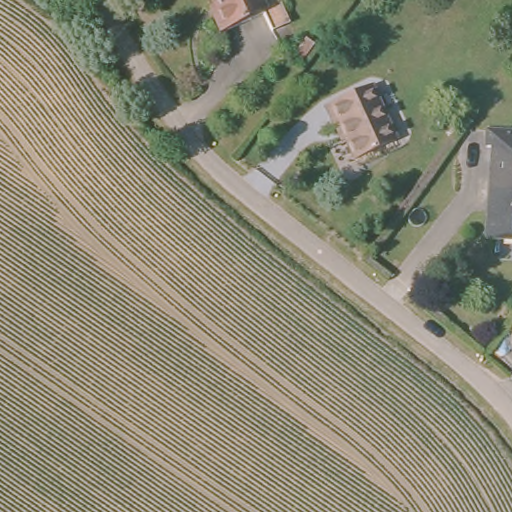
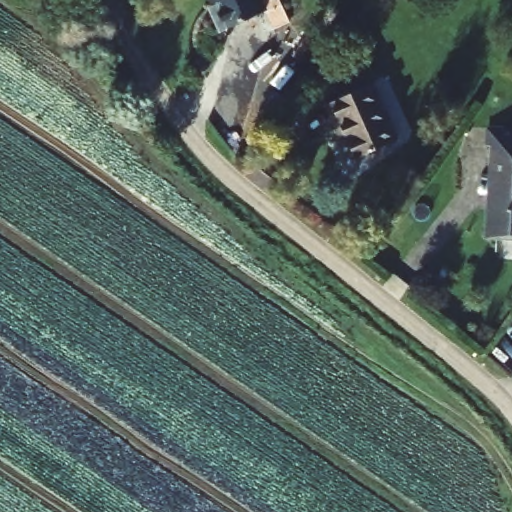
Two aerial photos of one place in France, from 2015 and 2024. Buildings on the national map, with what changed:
unchanged [(271,11),(279,29),(261,37),(253,19),(214,35),(199,0),(247,0),(254,18),(271,11)]
unchanged [(371,90),(395,147),(353,164),(345,144),(341,145),(326,109),(371,90)]
unchanged [(488,151),(489,135),(512,137),(512,242),(489,241),(494,152),(488,151)]

